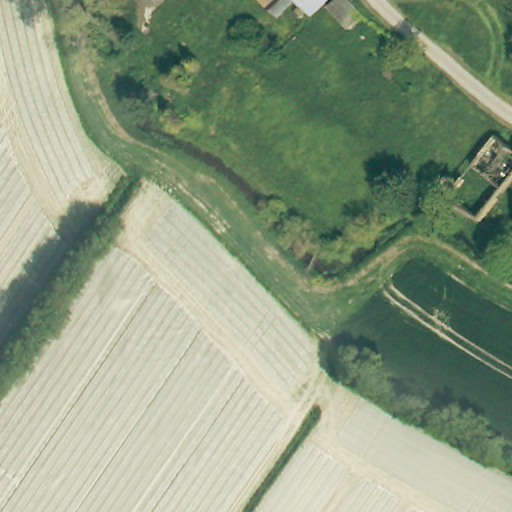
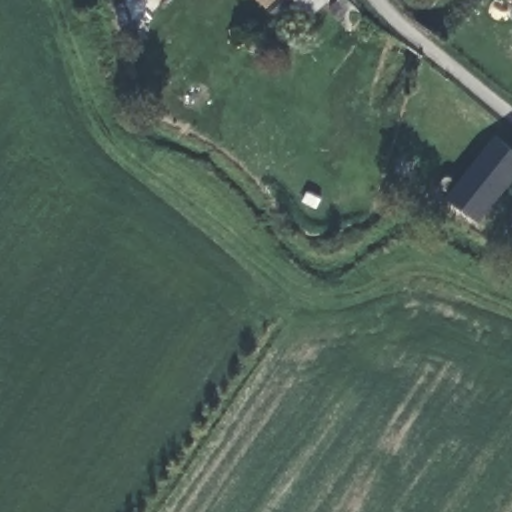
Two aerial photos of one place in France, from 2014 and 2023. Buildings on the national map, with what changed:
unchanged [(314,24),(299,10),(278,26),(264,13),(279,0),(342,0),(325,15),(314,24)]
unchanged [(350,3),(369,24),(354,36),(337,16),(350,3)]
demolished [(448,196),(495,133),(512,144),(512,181),(484,224),(448,196)]

